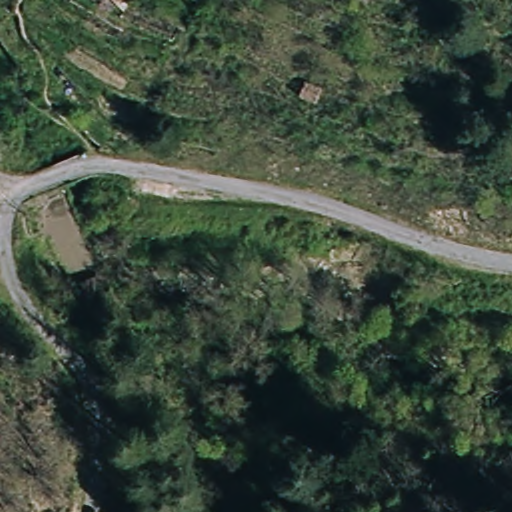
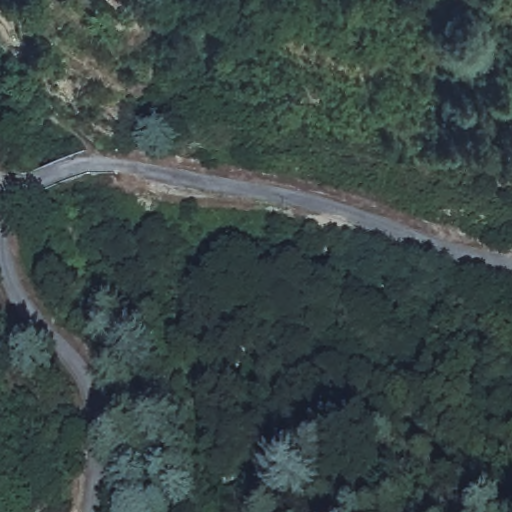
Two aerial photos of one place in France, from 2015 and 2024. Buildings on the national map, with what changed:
unchanged [(111,12),(101,0),(125,0),(111,12)]

